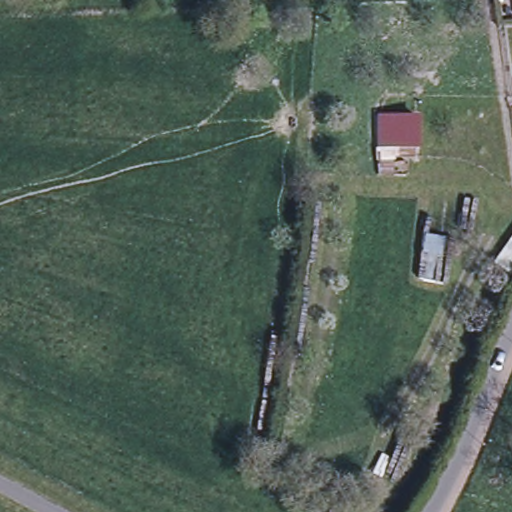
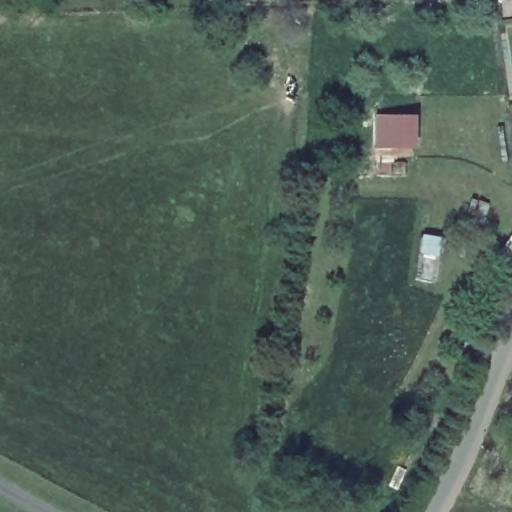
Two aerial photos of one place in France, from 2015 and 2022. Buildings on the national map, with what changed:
unchanged [(422,113),(422,149),(410,150),(375,150),(375,114),(422,113)]
unchanged [(512,237),(512,278),(512,279),(492,265),(512,237)]

